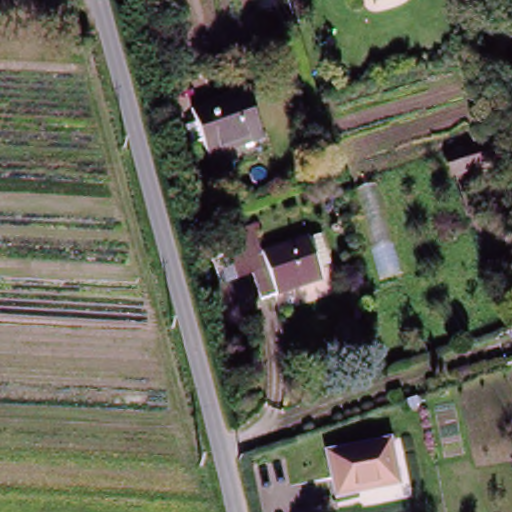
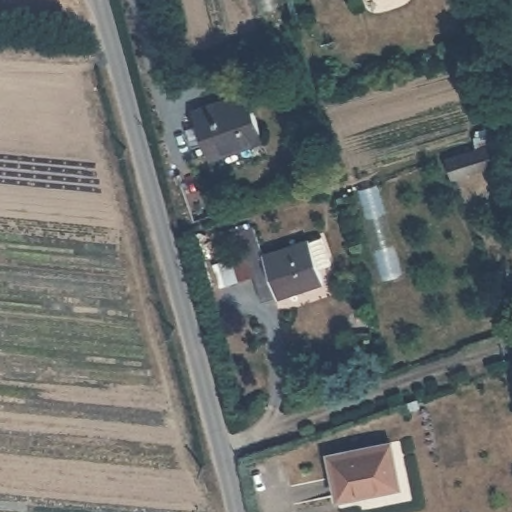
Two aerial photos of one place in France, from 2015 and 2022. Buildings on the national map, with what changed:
unchanged [(215,155),(209,137),(195,141),(190,124),(201,120),(196,105),(250,85),(270,136),(215,155)]
unchanged [(443,184),(437,164),(480,150),(475,131),(485,129),(491,146),(497,166),(443,184)]
unchanged [(345,263),(335,267),(338,280),(278,300),(255,230),(270,226),(279,251),(325,238),(325,240),(335,236),(345,263)]
unchanged [(335,496),(325,453),(389,440),(397,483),(335,496)]

